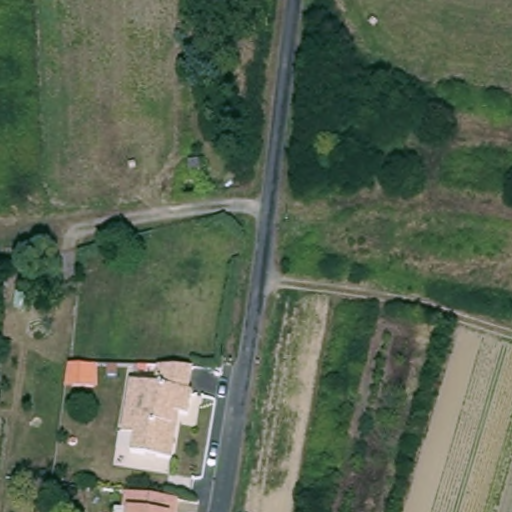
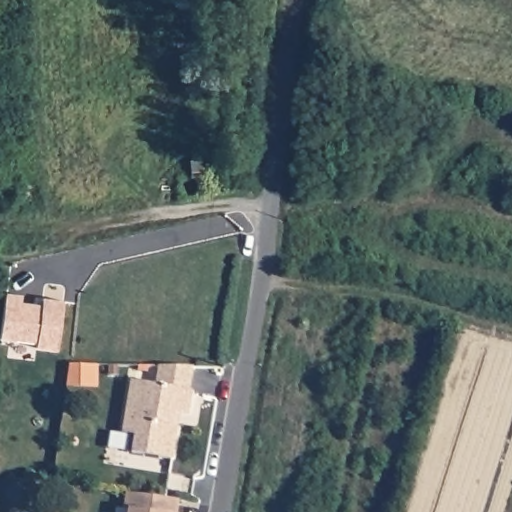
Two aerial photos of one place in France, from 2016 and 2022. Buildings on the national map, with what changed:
new [(20,295),(19,302),(40,305),(41,298),(62,300),(55,350),(35,347),(35,342),(0,337),(0,325),(4,293),(20,295)]
new [(68,362),(96,363),(96,384),(95,389),(65,387),(66,382),(68,362)]
unchanged [(179,459),(136,452),(139,433),(126,431),(136,379),(159,383),(162,366),(197,367),(194,390),(200,392),(196,413),(186,412),(184,426),(179,459)]
unchanged [(121,510),(129,511),(131,495),(163,499),(185,501),(183,512),(120,512),(121,510)]

